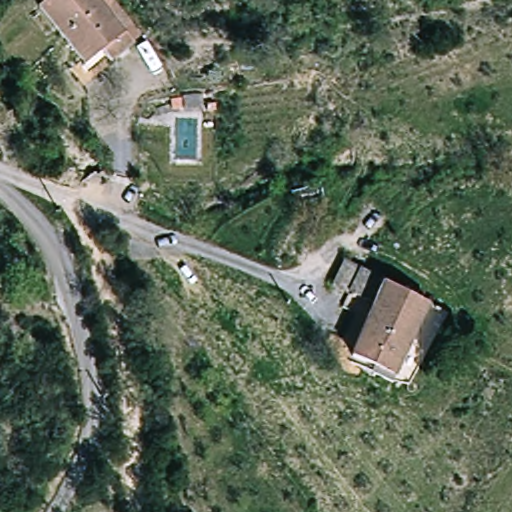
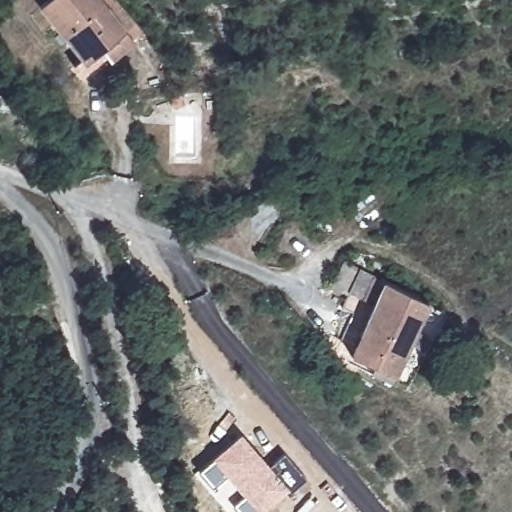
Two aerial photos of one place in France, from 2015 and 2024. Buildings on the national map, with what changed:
unchanged [(115,64),(106,52),(90,65),(45,8),(55,0),(106,0),(131,32),(141,44),(115,64)]
unchanged [(388,377),(386,380),(365,370),(368,362),(346,352),(368,303),(327,282),(339,257),(424,301),(388,377)]
unchanged [(441,309),(403,381),(388,377),(424,301),(441,309)]
new [(213,458),(241,433),(269,467),(285,453),(307,480),(290,493),(289,491),(264,512),(237,512),(232,506),(243,496),(226,476),(212,488),(198,471),(213,459),(213,458)]

